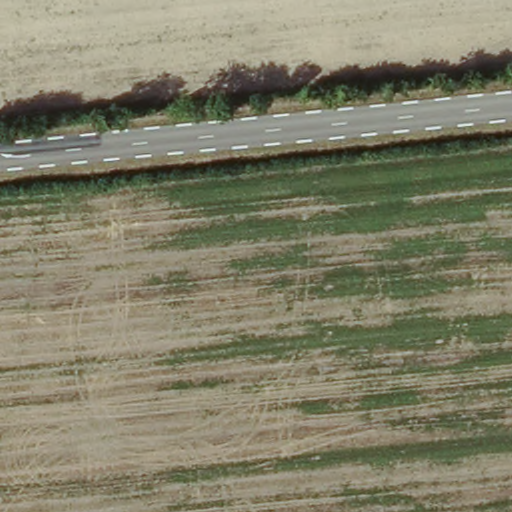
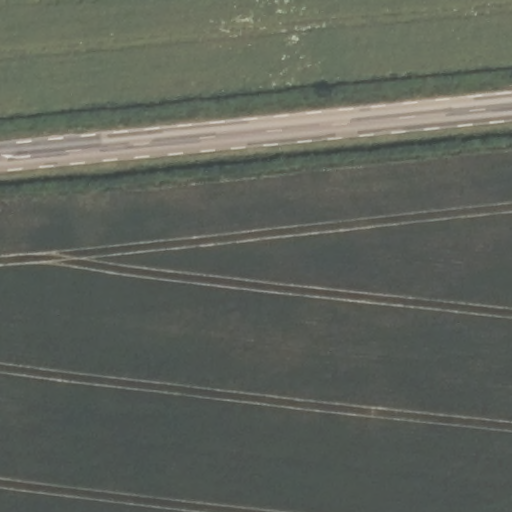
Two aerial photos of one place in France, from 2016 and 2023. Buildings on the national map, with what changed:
[]

